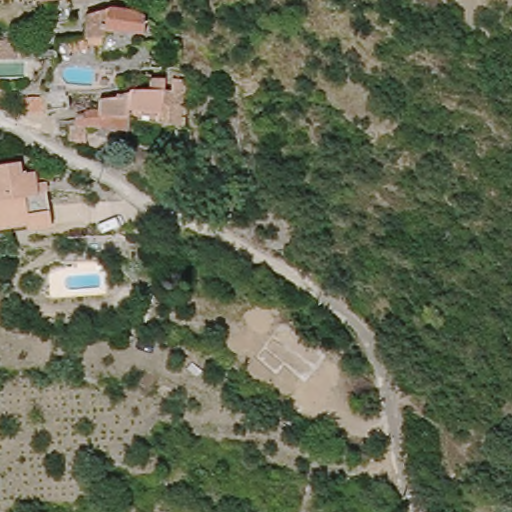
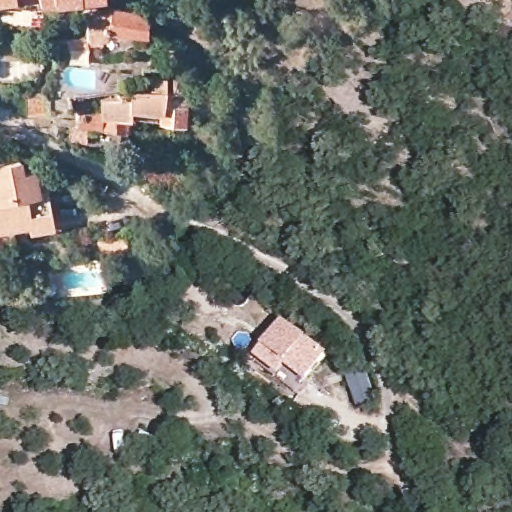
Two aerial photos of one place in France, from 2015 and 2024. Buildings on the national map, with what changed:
unchanged [(65,0),(78,0),(65,4),(65,0)]
unchanged [(115,9),(138,11),(152,16),(153,34),(115,34),(90,35),(90,14),(115,9)]
unchanged [(71,37),(90,33),(90,35),(90,47),(71,48),(71,37)]
unchanged [(112,131),(102,127),(80,128),(81,118),(81,114),(94,109),(102,108),(102,97),(122,96),(122,94),(134,94),(135,90),(153,89),(155,77),(167,77),(168,87),(172,87),(172,77),(190,77),(191,123),(136,122),(135,133),(112,131)]
unchanged [(51,109),(51,123),(35,125),(23,121),(24,108),(35,109),(49,109),(51,109)]
unchanged [(25,163),(25,173),(36,173),(37,182),(46,182),(50,228),(24,230),(23,224),(0,226),(0,165),(25,163)]
new [(254,359),(261,347),(281,321),(305,338),(326,354),(305,384),(284,367),(278,376),(254,359)]

